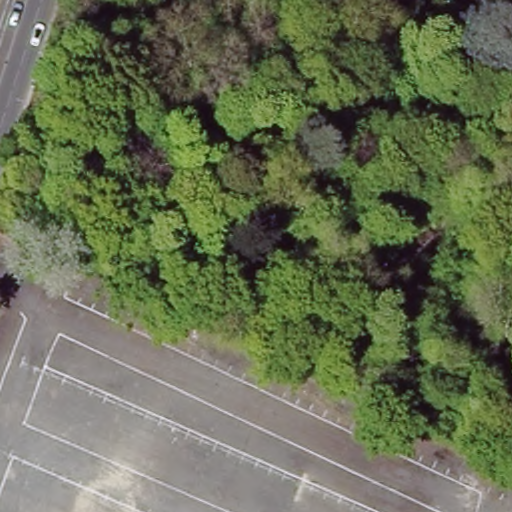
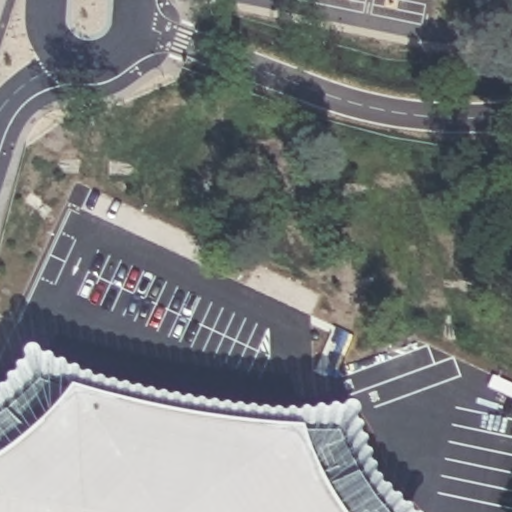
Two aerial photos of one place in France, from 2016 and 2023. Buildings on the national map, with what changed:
new [(208,427),(281,435),(300,436),(313,463),(329,500),(337,512),(0,512),(0,465),(16,455),(50,425),(75,396),(104,405),(208,427)]

